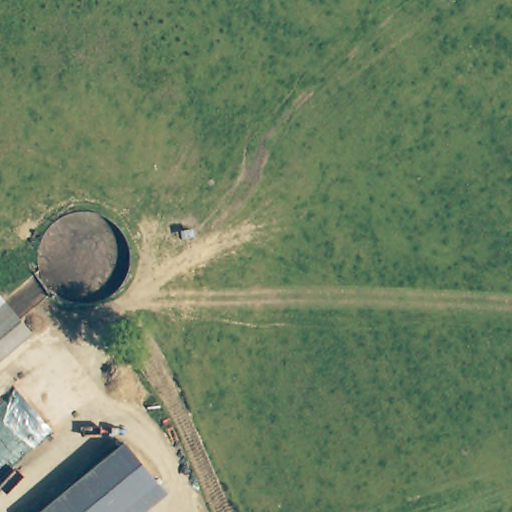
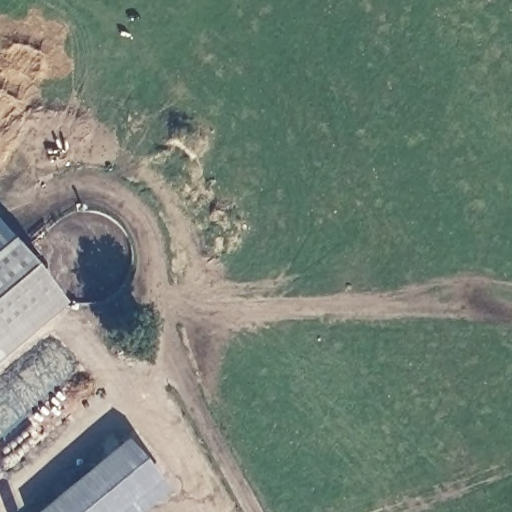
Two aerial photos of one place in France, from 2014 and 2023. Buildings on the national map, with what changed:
new [(0,247),(0,227),(10,238),(0,247)]
new [(63,302),(0,357),(0,247),(10,238),(63,302)]
unchanged [(167,492),(143,512),(34,512),(125,440),(167,492)]

